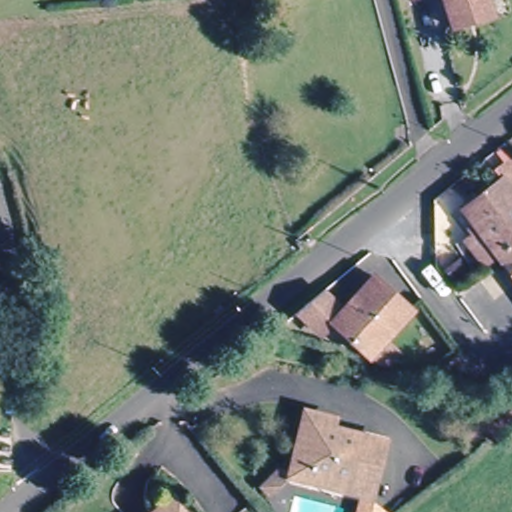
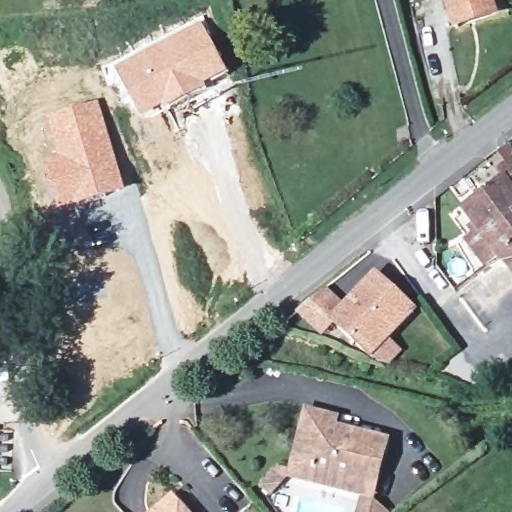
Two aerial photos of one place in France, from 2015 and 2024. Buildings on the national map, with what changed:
unchanged [(455,26),(447,0),(490,0),(494,13),(455,26)]
new [(201,21),(228,74),(187,99),(140,119),(112,66),(201,21)]
new [(57,156),(45,118),(98,100),(125,192),(59,213),(41,162),(57,156)]
unchanged [(512,159),(512,196),(499,180),(492,171),(510,157),(512,159)]
unchanged [(512,196),(512,244),(506,249),(495,257),(481,267),(462,241),(475,231),(459,210),(499,180),(512,196)]
unchanged [(495,257),(506,249),(512,244),(512,279),(495,257)]
unchanged [(385,358),(371,345),(365,352),(328,317),(317,329),(294,307),(320,285),(340,303),(370,272),(407,306),(394,321),(408,334),(385,358)]
unchanged [(353,492),(290,477),(305,421),(307,412),(335,419),(333,428),(384,441),(374,484),(370,497),(353,492)]
unchanged [(172,498),(184,512),(156,512),(172,498)]

